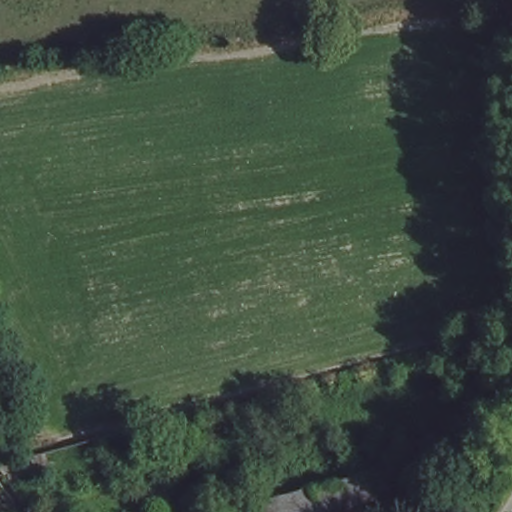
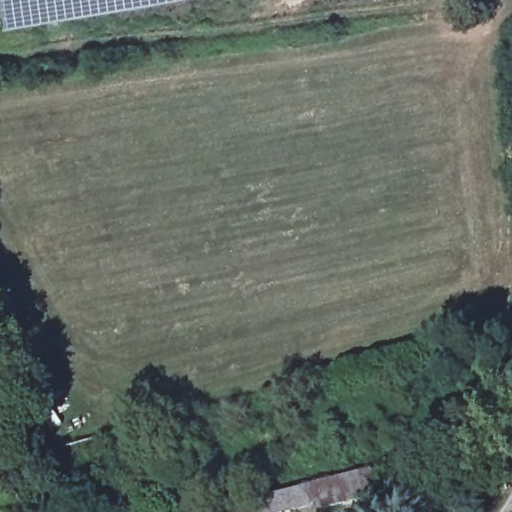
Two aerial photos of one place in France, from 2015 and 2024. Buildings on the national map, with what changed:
new [(1,25),(0,19),(0,0),(158,0),(1,25)]
unchanged [(158,512),(142,512),(137,470),(165,467),(169,510),(158,512)]
unchanged [(373,469),(379,493),(380,498),(331,512),(318,512),(318,509),(309,512),(222,512),(246,505),(373,469)]
unchanged [(0,478),(0,472),(3,476),(0,478)]

